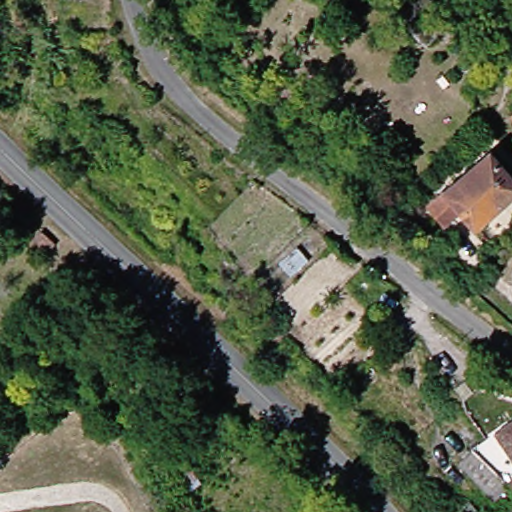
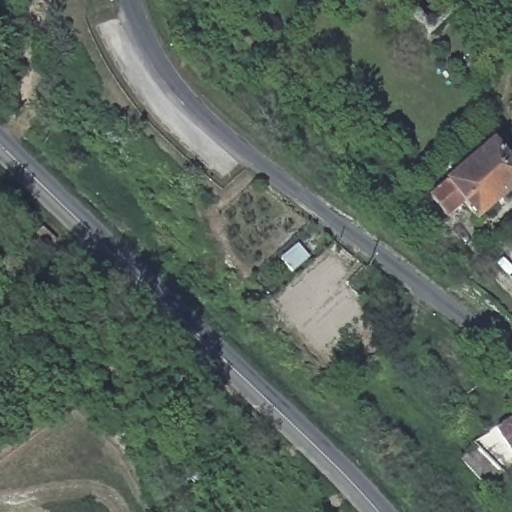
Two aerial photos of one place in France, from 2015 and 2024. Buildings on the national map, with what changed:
unchanged [(512,168),(512,199),(484,225),(468,209),(449,225),(427,201),(490,145),(512,168)]
unchanged [(463,462),(479,450),(475,447),(500,431),(512,422),(512,492),(497,504),(463,462)]

